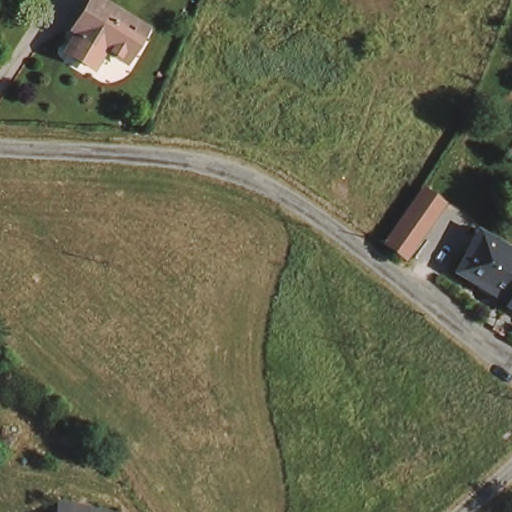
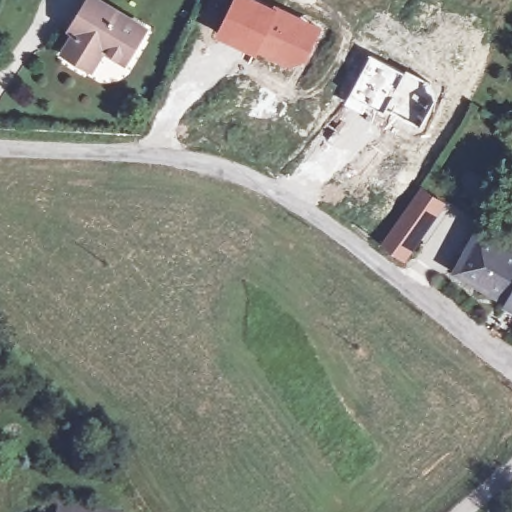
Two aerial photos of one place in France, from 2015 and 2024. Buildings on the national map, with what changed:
unchanged [(88,60),(68,49),(81,30),(75,26),(92,0),(102,0),(147,27),(127,59),(107,47),(96,65),(88,60)]
new [(232,0),(264,0),(325,27),(300,70),(256,55),(215,37),(232,0)]
new [(363,69),(376,76),(372,82),(381,87),(378,95),(383,98),(377,109),(360,102),(356,108),(345,102),(363,69)]
unchanged [(420,227),(403,256),(385,244),(390,236),(401,216),(420,227)]
unchanged [(512,258),(512,306),(452,270),(471,237),(512,258)]

